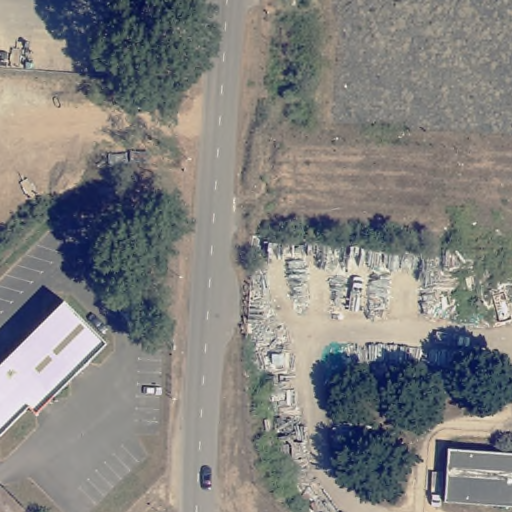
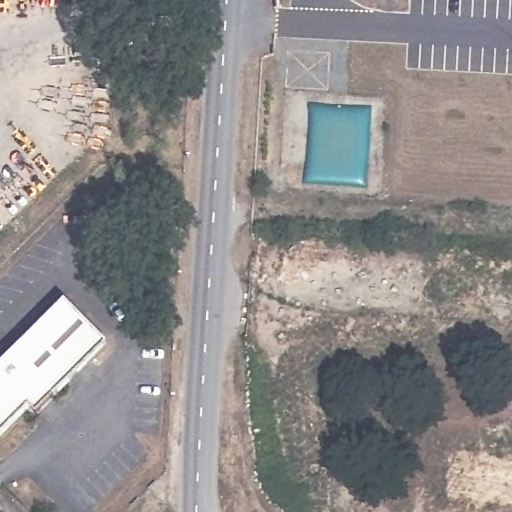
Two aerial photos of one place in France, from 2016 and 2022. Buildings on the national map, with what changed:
unchanged [(33,412),(26,406),(0,432),(0,359),(61,298),(103,340),(33,412)]
demolished [(450,447),(512,449),(512,510),(447,507),(450,447)]

